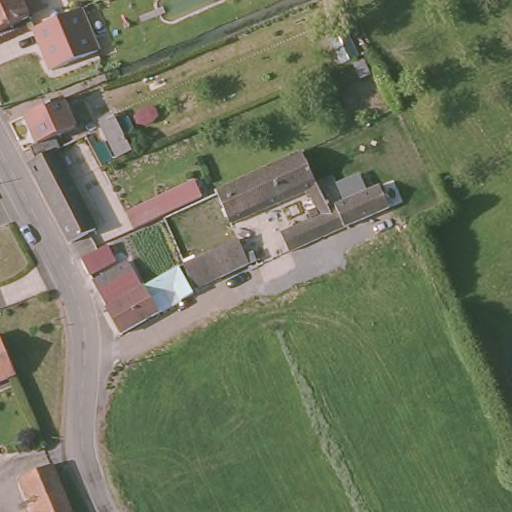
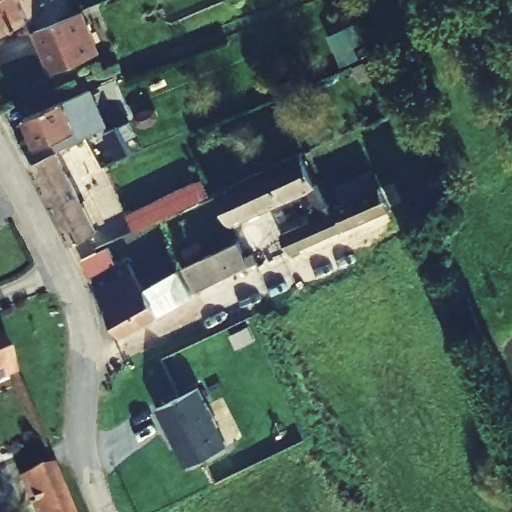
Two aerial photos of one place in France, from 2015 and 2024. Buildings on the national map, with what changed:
unchanged [(27,18),(0,29),(0,0),(20,0),(27,18)]
unchanged [(99,53),(49,72),(28,27),(58,15),(78,7),(99,53)]
unchanged [(119,163),(84,94),(98,87),(136,155),(119,163)]
unchanged [(33,174),(26,162),(40,155),(22,119),(61,104),(79,139),(61,147),(68,158),(59,162),(33,174)]
unchanged [(230,229),(217,199),(241,187),(247,184),(248,183),(306,155),(306,154),(309,159),(309,160),(339,213),(348,209),(358,205),(384,195),(397,217),(294,260),(283,237),(323,220),(310,192),(235,227),(230,229)]
unchanged [(33,174),(59,162),(95,225),(85,231),(93,245),(79,252),(33,174)]
unchanged [(126,211),(198,178),(206,199),(135,230),(126,211)]
unchanged [(230,229),(235,227),(250,260),(260,257),(265,267),(203,296),(191,273),(181,250),(230,229)]
unchanged [(111,258),(85,271),(83,264),(109,252),(109,251),(111,258)]
unchanged [(105,314),(93,286),(133,268),(146,295),(105,314)]
unchanged [(203,296),(178,309),(173,301),(153,310),(146,295),(191,273),(203,296)]
unchanged [(4,344),(20,386),(0,394),(0,345),(4,344)]
new [(155,405),(196,383),(228,443),(190,463),(176,436),(173,437),(155,405)]
unchanged [(60,469),(76,512),(32,512),(22,481),(60,469)]

